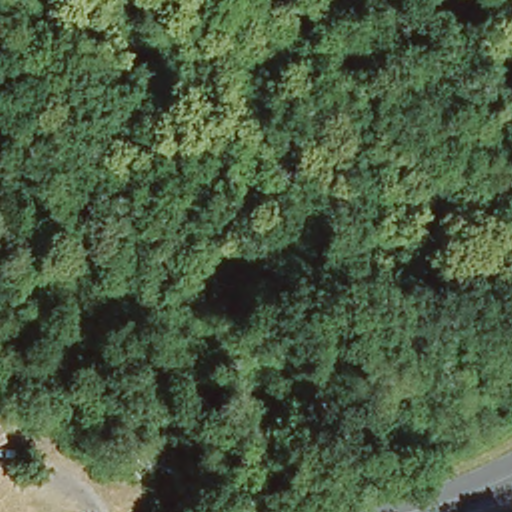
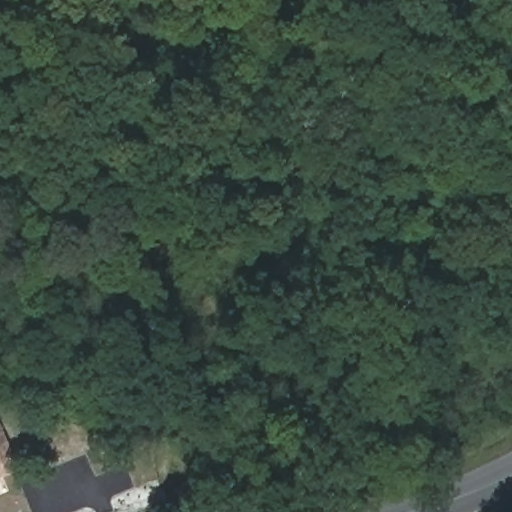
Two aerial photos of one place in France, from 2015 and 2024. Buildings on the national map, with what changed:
[]

